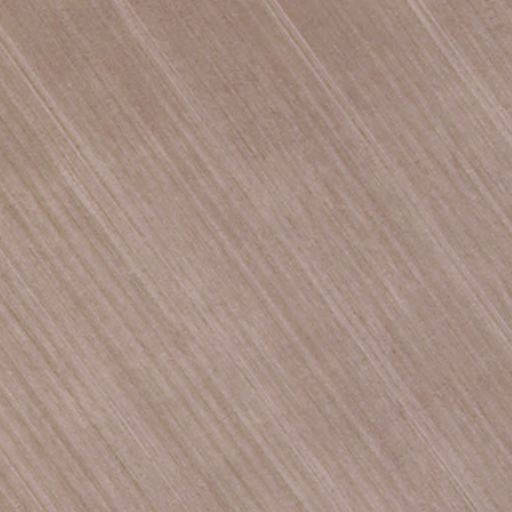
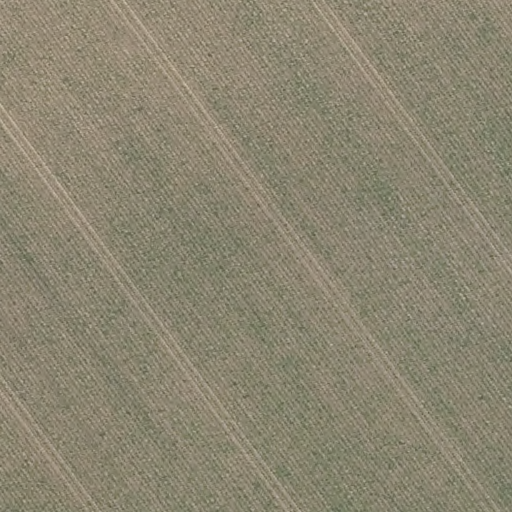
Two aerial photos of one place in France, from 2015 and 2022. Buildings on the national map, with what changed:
[]

